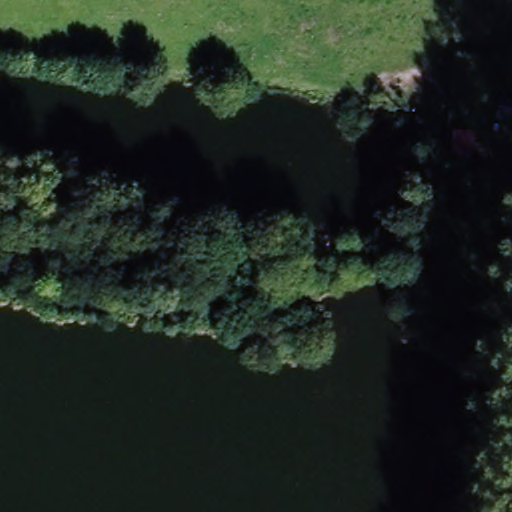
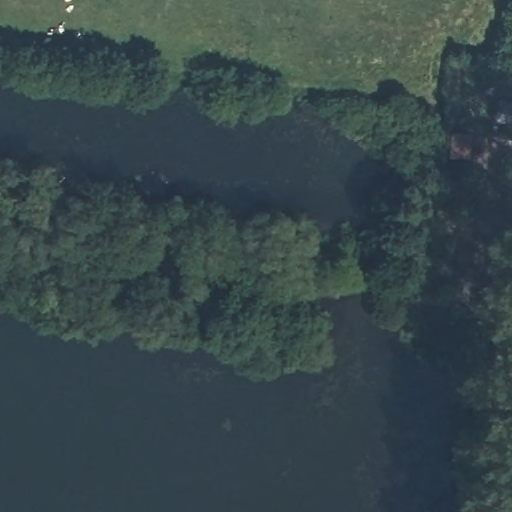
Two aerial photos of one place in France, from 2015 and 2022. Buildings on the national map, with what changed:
unchanged [(512,103),(512,126),(497,121),(502,100),(512,103)]

